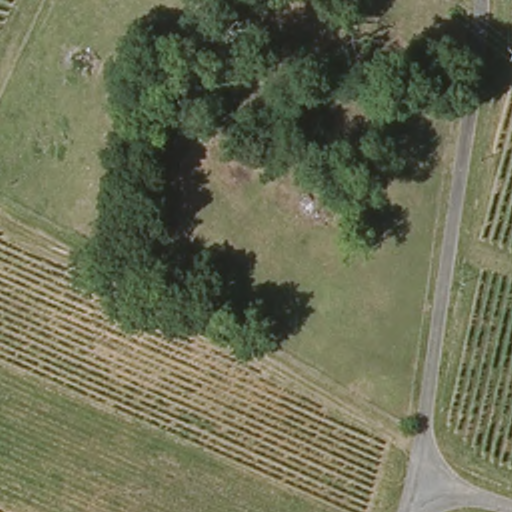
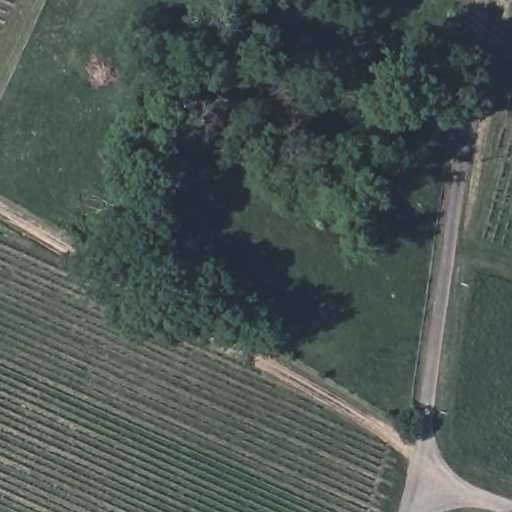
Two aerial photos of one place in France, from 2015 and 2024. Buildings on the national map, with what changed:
unchanged [(394,452),(387,447),(392,439),(399,443),(394,452)]

